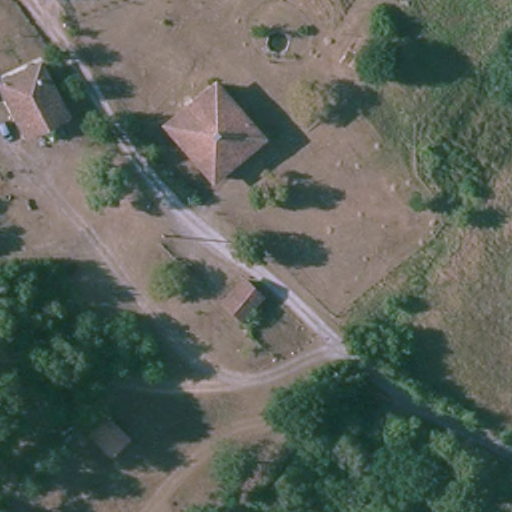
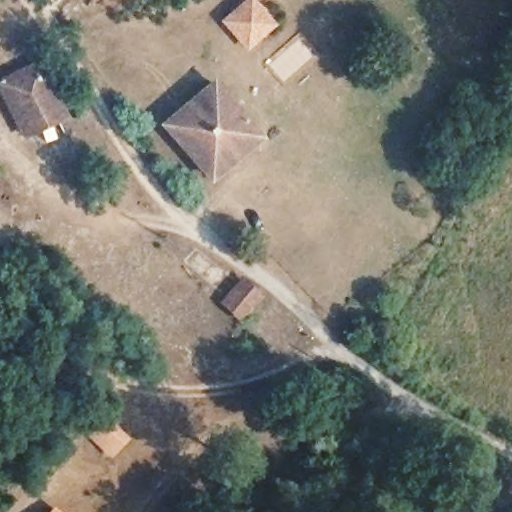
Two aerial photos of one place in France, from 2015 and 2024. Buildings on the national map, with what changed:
new [(239,31),(227,18),(247,0),(255,0),(274,21),(267,27),(249,43),(239,31)]
unchanged [(21,139),(0,99),(0,83),(34,66),(61,118),(21,139)]
unchanged [(206,86),(252,137),(207,176),(161,126),(206,86)]
unchanged [(234,320),(217,304),(239,282),(255,299),(234,320)]
unchanged [(81,443),(95,424),(120,442),(106,460),(81,443)]

